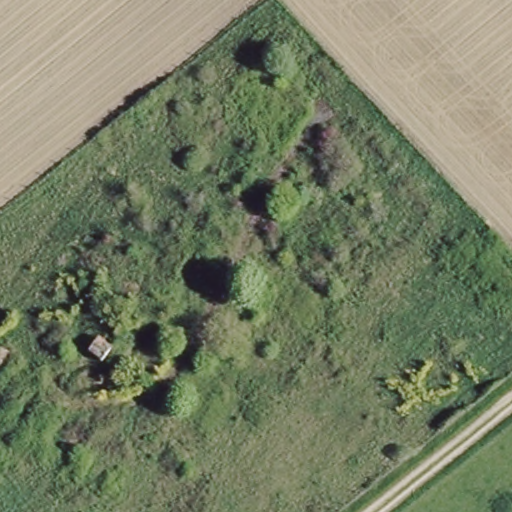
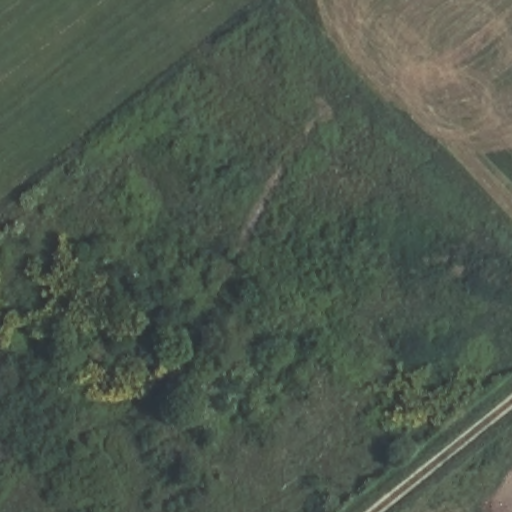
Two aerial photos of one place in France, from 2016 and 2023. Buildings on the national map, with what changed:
unchanged [(113,330),(103,344),(89,333),(99,320),(113,330)]

